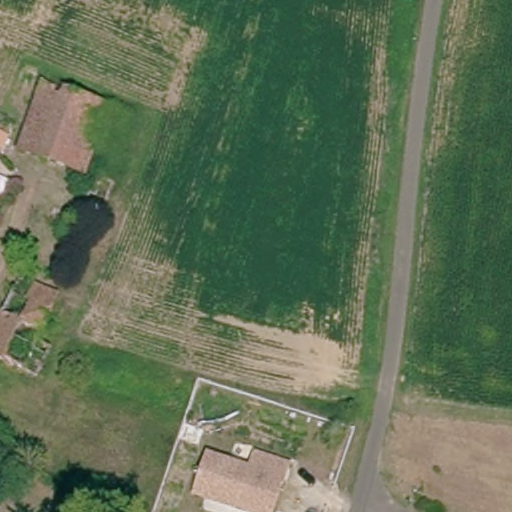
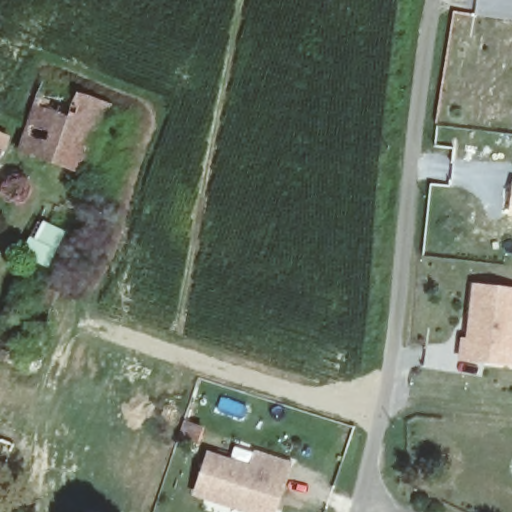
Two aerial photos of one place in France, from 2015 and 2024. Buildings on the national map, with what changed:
unchanged [(100,179),(10,149),(11,144),(30,84),(119,114),(112,137),(100,179)]
unchanged [(0,135),(6,137),(0,151),(0,135)]
new [(512,181),(512,217),(509,217),(512,181)]
unchanged [(0,315),(19,277),(61,293),(41,346),(56,349),(43,380),(0,363),(0,315)]
new [(512,289),(512,368),(458,362),(460,338),(467,339),(473,285),(512,289)]
demolished [(0,439),(26,448),(19,471),(0,464),(0,439)]
unchanged [(251,468),(256,452),(289,462),(274,512),(252,512),(194,495),(206,455),(251,468)]

